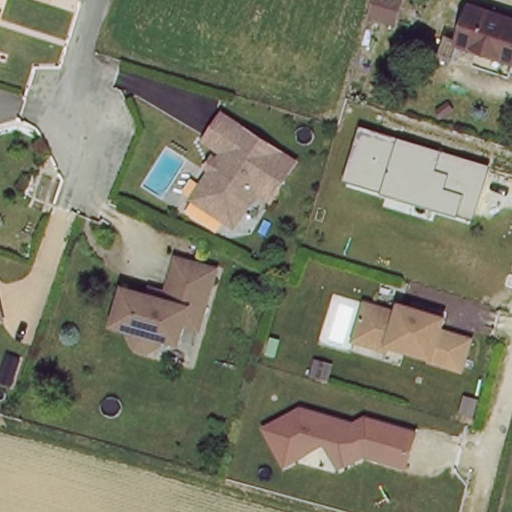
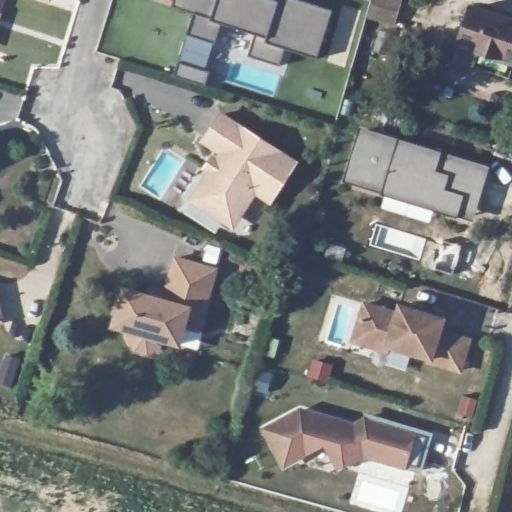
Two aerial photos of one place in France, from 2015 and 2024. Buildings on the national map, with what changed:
unchanged [(47,0),(49,0),(49,1),(47,0)]
new [(318,57),(286,49),(281,65),(250,56),(256,34),(222,24),(216,44),(188,35),(194,14),(172,7),(174,0),(280,0),(304,0),(333,9),(318,57)]
unchanged [(371,11),(373,2),(373,0),(398,0),(400,1),(397,10),(391,29),(367,22),(371,11)]
unchanged [(461,55),(465,40),(477,4),(512,15),(512,71),(461,55)]
new [(211,72),(208,86),(175,77),(180,63),(211,72)]
unchanged [(201,189),(212,174),(206,171),(213,162),(218,164),(223,156),(205,144),(222,117),(296,165),(271,204),(256,194),(239,221),(226,223),(209,212),(193,202),(201,189)]
unchanged [(359,127),(492,167),(475,222),(343,181),(359,127)]
unchanged [(216,273),(198,332),(184,328),(178,347),(161,342),(160,347),(148,355),(146,355),(136,352),(129,340),(131,333),(113,328),(125,292),(149,298),(151,291),(166,296),(177,262),(216,273)]
unchanged [(0,323),(0,303),(5,322),(0,323)]
unchanged [(355,348),(359,334),(366,311),(399,321),(401,312),(409,316),(445,326),(441,338),(471,347),(462,377),(431,368),(432,366),(390,353),(389,358),(355,348)]
unchanged [(260,430),(298,408),(354,423),(363,417),(417,433),(406,471),(364,458),(336,472),(323,445),(305,455),(283,467),(260,430)]

